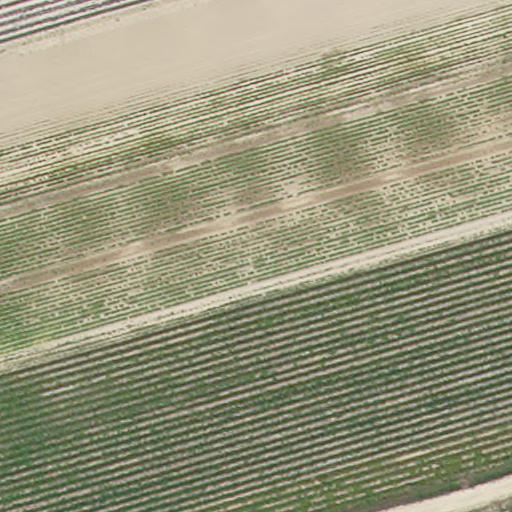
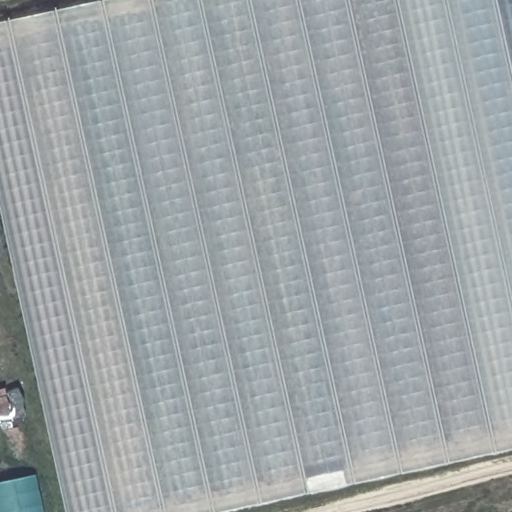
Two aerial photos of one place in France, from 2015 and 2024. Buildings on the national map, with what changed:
new [(0,23),(106,0),(512,0),(512,448),(217,512),(65,512),(0,216),(0,23)]
new [(0,484),(35,476),(42,512),(0,512),(0,484)]

